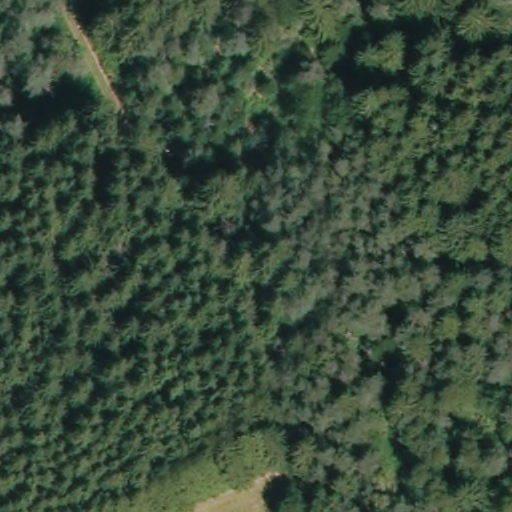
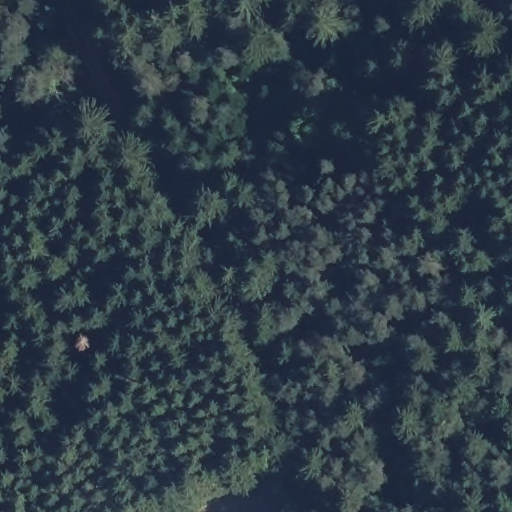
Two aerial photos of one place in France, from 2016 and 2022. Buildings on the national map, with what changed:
[]

